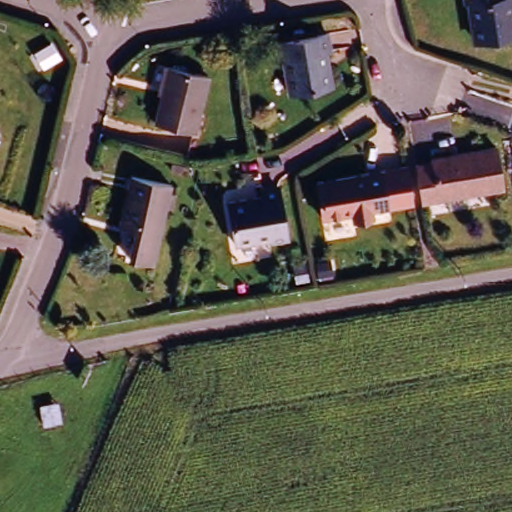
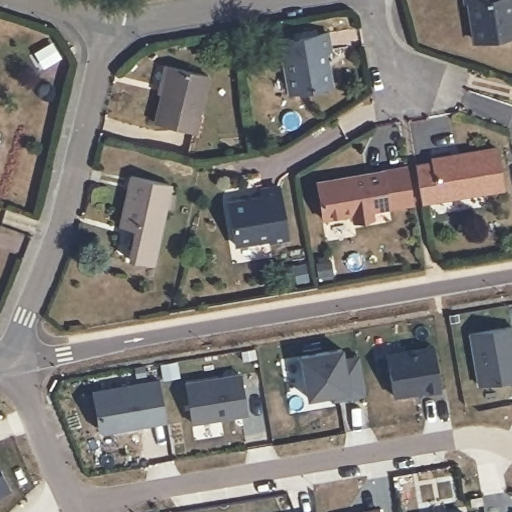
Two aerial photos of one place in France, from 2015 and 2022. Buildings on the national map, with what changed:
unchanged [(508,4),(509,12),(511,12),(512,15),(512,35),(473,41),(471,22),(469,20),(466,2),(464,2),(464,0),(510,0),(510,2),(508,4)]
unchanged [(326,27),(330,48),(325,49),(330,84),(286,91),(281,59),(276,59),(271,37),(326,27)]
unchanged [(202,79),(191,127),(151,117),(161,69),(202,79)]
unchanged [(407,167),(407,165),(430,162),(430,154),(455,151),(456,159),(471,157),(469,149),(493,146),(500,192),(411,203),(407,167)]
unchanged [(381,170),(386,207),(370,210),(371,219),(352,221),(350,212),(320,217),(314,179),(381,170)]
unchanged [(177,185),(160,262),(136,257),(143,228),(126,224),(136,175),(177,185)]
unchanged [(259,195),(258,189),(277,187),(285,240),(266,244),(266,238),(231,242),(223,201),(259,195)]
new [(315,263),(330,261),(332,274),(318,277),(315,263)]
new [(508,323),(512,347),(512,374),(477,380),(468,330),(508,323)]
new [(342,345),(345,356),(359,355),(367,396),(333,402),(331,394),(306,398),(298,353),(342,345)]
new [(433,345),(441,392),(425,395),(424,392),(394,397),(387,353),(433,345)]
new [(238,372),(245,411),(191,420),(185,380),(238,372)]
new [(160,378),(168,422),(100,433),(90,391),(160,378)]
demolished [(58,408),(66,432),(43,433),(41,411),(58,408)]
new [(0,493),(0,473),(7,489),(0,493)]
new [(378,512),(360,512),(360,510),(377,507),(378,512)]
new [(460,508),(460,512),(438,512),(460,508)]

